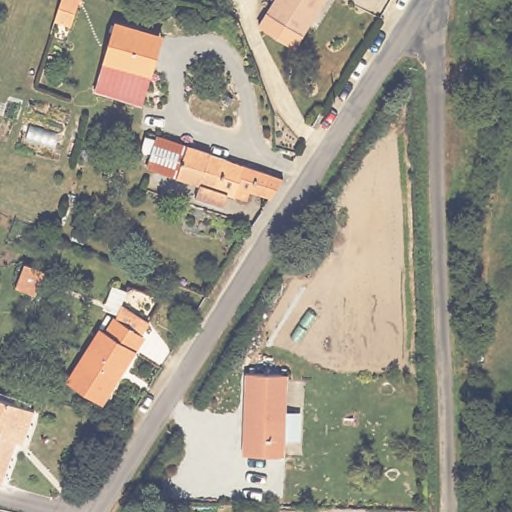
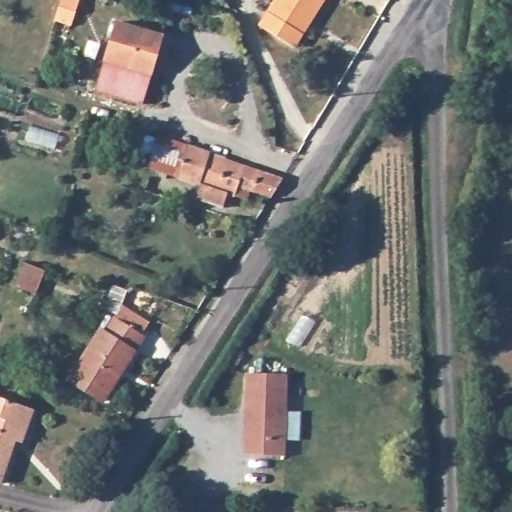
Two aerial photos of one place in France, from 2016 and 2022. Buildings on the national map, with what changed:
unchanged [(303,40),(270,19),(282,0),(329,0),(303,40)]
unchanged [(115,28),(161,41),(150,79),(104,66),(115,28)]
unchanged [(142,108),(95,95),(104,66),(150,79),(142,108)]
unchanged [(208,206),(213,191),(130,163),(136,143),(143,145),(149,134),(248,167),(286,179),(273,201),(253,194),(249,203),(238,200),(232,215),(208,206)]
unchanged [(10,259),(30,267),(21,290),(0,283),(10,259)]
unchanged [(100,336),(105,339),(112,326),(123,315),(147,331),(140,343),(100,408),(67,385),(100,336)]
unchanged [(246,435),(253,435),(253,407),(246,406),(247,369),(286,368),(285,452),(245,451),(246,435)]
unchanged [(38,414),(28,445),(20,442),(6,485),(0,483),(0,400),(38,414)]

